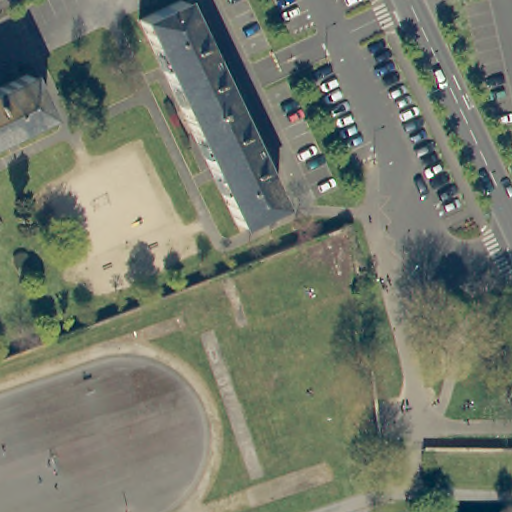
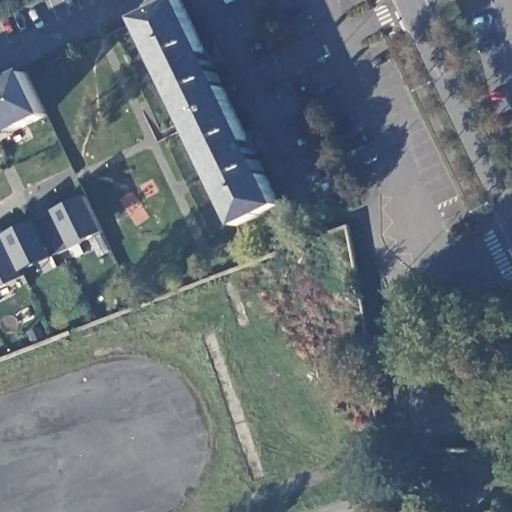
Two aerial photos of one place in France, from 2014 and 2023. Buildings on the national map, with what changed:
unchanged [(140,22),(181,1),(279,207),(238,226),(140,22)]
unchanged [(48,115),(0,139),(0,89),(29,75),(48,115)]
new [(71,248),(54,256),(26,270),(26,275),(0,288),(0,231),(4,229),(3,235),(36,220),(40,230),(59,221),(54,210),(87,195),(104,231),(71,248)]

